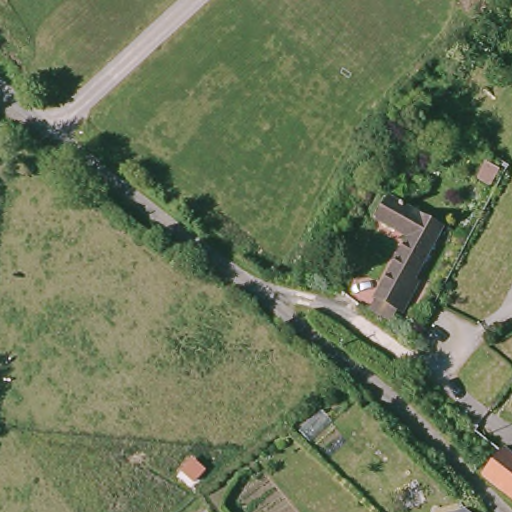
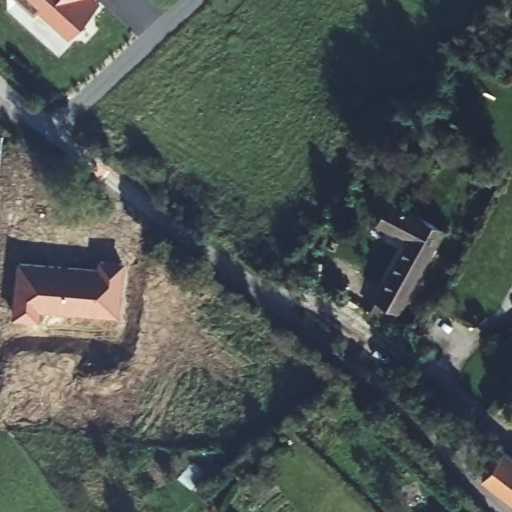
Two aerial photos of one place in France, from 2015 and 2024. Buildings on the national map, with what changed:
new [(98,1),(70,33),(39,5),(34,10),(24,0),(97,0),(98,1)]
unchanged [(436,230),(402,294),(407,298),(397,314),(372,299),(403,241),(373,224),(385,202),(436,230)]
new [(20,259),(98,268),(100,257),(128,261),(120,315),(40,306),(40,318),(13,315),(20,259)]
unchanged [(481,470),(501,443),(512,451),(512,493),(481,470)]
unchanged [(472,512),(443,512),(465,507),(472,512)]

